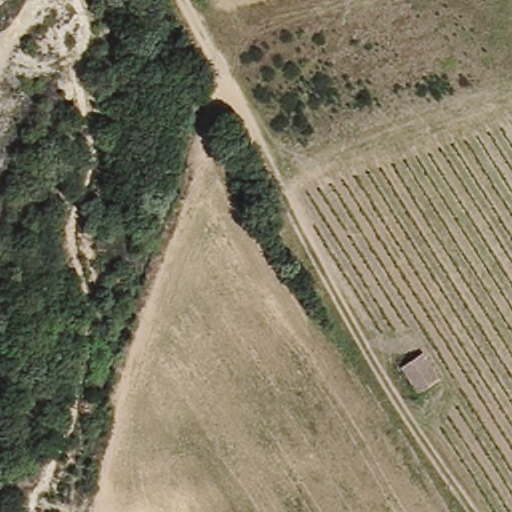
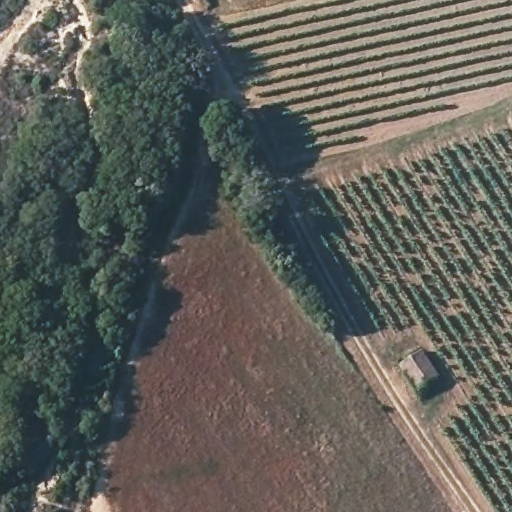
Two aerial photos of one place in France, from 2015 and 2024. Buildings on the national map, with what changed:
unchanged [(421,347),(440,375),(420,388),(402,358),(421,347)]

